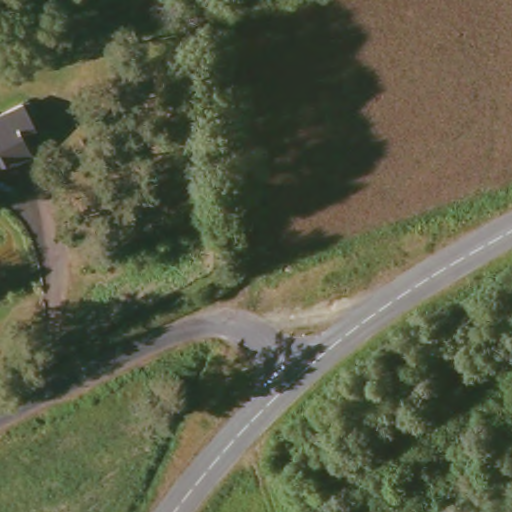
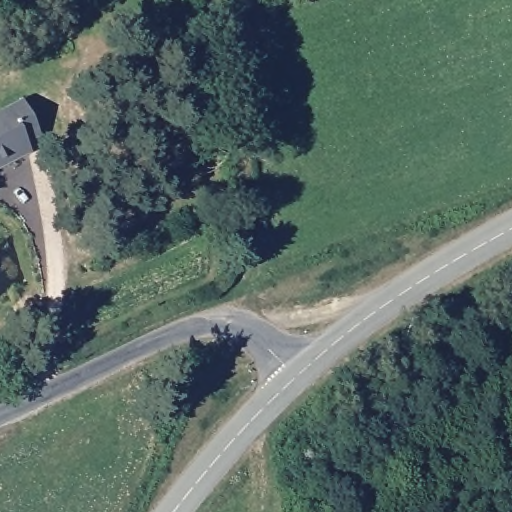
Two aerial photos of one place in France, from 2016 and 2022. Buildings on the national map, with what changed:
unchanged [(0,111),(26,99),(42,134),(30,140),(31,143),(35,150),(0,168),(0,111)]

